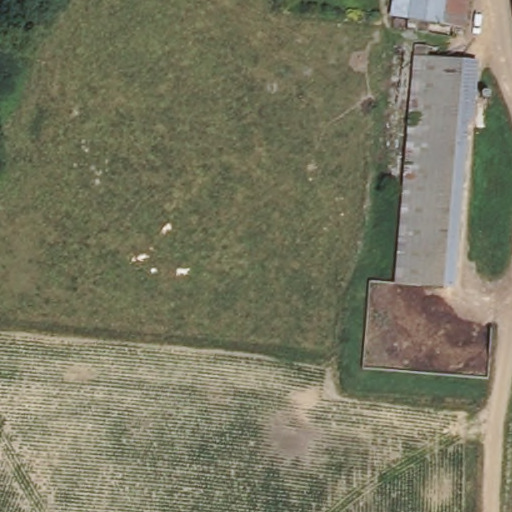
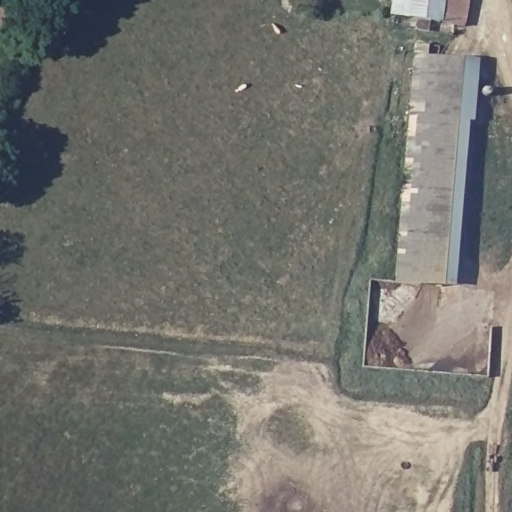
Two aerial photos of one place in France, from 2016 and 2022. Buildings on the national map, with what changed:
unchanged [(471,27),(438,21),(436,32),(423,30),(425,20),(400,15),(402,0),(475,0),(471,27)]
unchanged [(440,51),(440,62),(472,64),(453,288),(409,284),(429,50),(440,51)]

